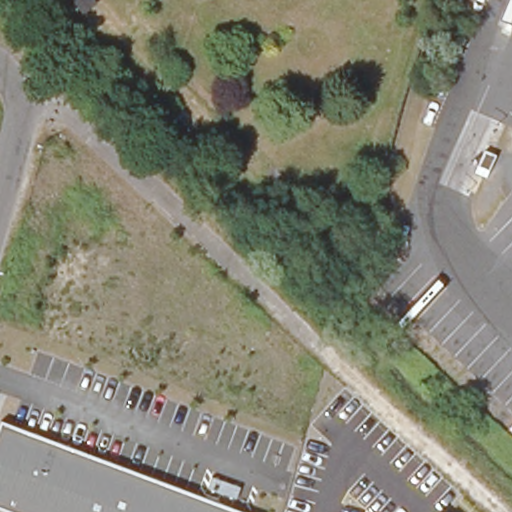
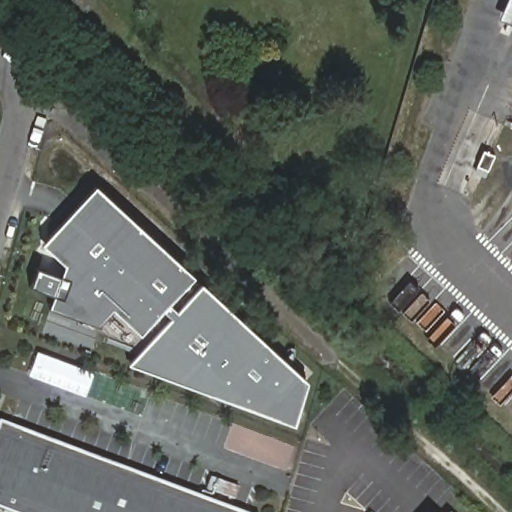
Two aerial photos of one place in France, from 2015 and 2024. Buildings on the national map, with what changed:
unchanged [(73,0),(89,0),(98,9),(85,24),(67,7),(73,0)]
new [(192,274),(167,302),(175,310),(200,282),(305,381),(292,422),(127,362),(168,317),(161,308),(139,332),(111,306),(96,322),(47,304),(52,292),(30,282),(35,267),(57,275),(62,262),(40,240),(92,185),(192,274)]
new [(151,394),(142,417),(30,375),(39,352),(151,394)]
unchanged [(0,509),(0,422),(236,512),(9,512),(0,509)]

